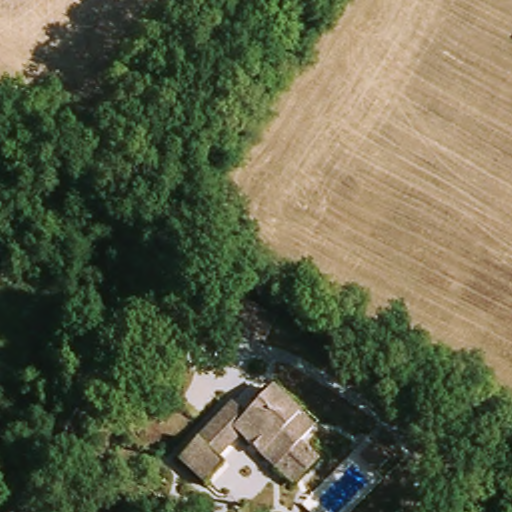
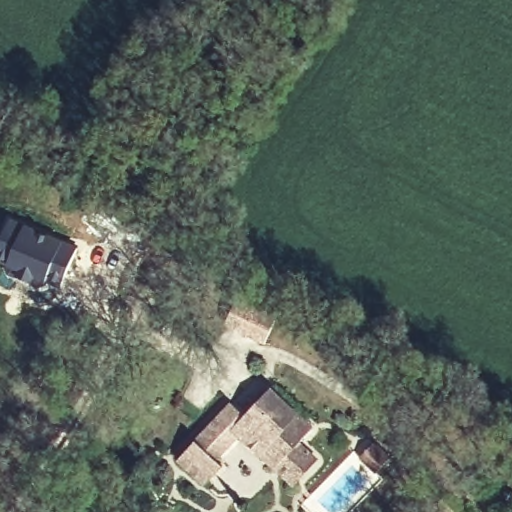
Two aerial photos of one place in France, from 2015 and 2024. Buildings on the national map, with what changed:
new [(75,252),(58,289),(44,283),(42,286),(37,289),(30,286),(29,281),(30,277),(20,272),(18,276),(12,278),(7,275),(5,270),(6,267),(0,264),(0,241),(8,222),(75,252)]
unchanged [(252,338),(265,316),(300,336),(289,358),(252,338)]
unchanged [(231,429),(205,454),(212,462),(194,479),(170,452),(224,400),(236,413),(264,386),(304,428),(290,440),(308,458),(282,483),(265,464),(231,429)]
unchanged [(390,456),(375,470),(359,454),(374,440),(390,456)]
demolished [(412,480),(399,494),(382,477),(397,463),(412,480)]

